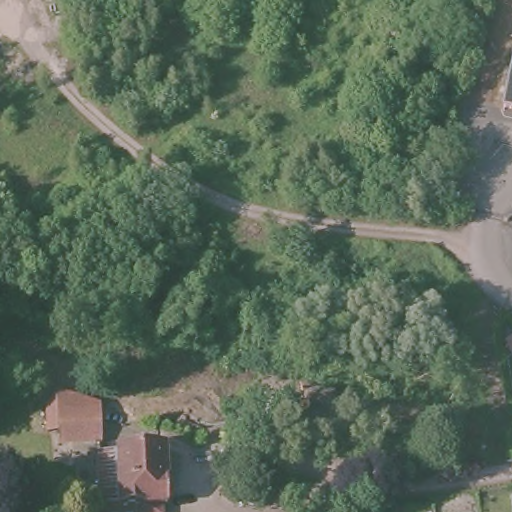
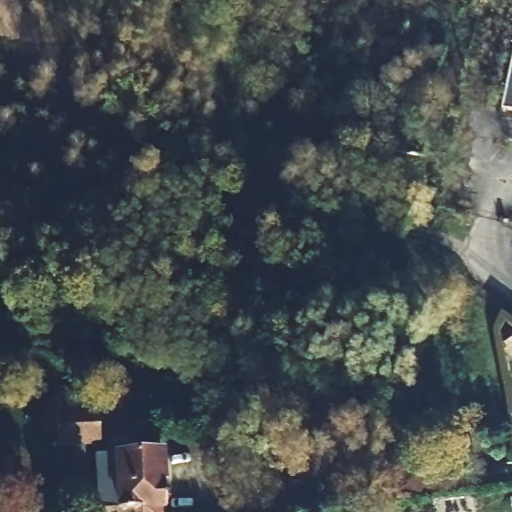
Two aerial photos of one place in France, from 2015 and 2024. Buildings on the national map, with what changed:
unchanged [(195,145),(214,149),(209,172),(190,168),(195,145)]
unchanged [(59,445),(57,436),(57,434),(49,434),(47,407),(57,395),(69,398),(99,410),(100,443),(73,445),(72,435),(70,435),(72,445),(59,445)]
unchanged [(165,501),(165,512),(105,512),(102,451),(167,447),(170,501),(165,501)]

